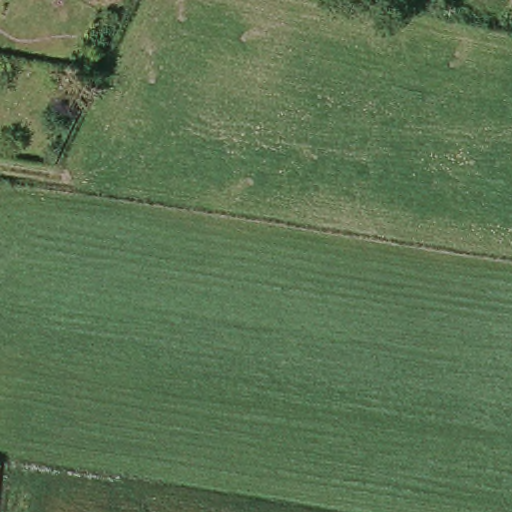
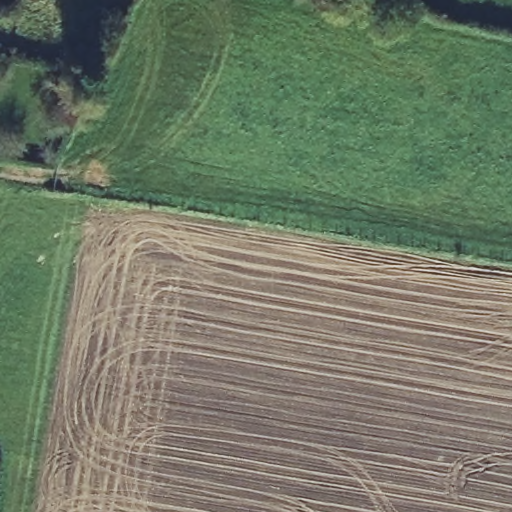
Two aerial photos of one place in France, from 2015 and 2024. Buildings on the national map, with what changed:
[]

